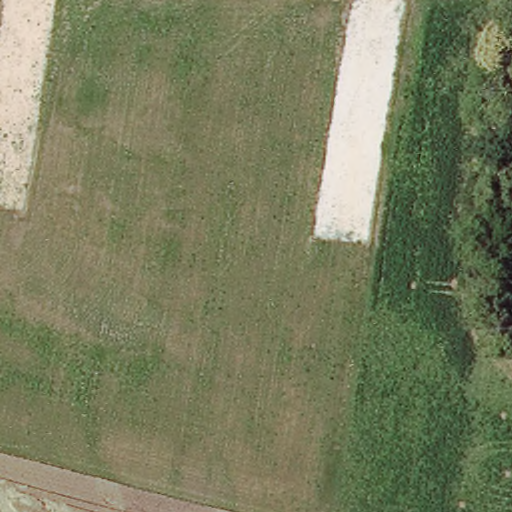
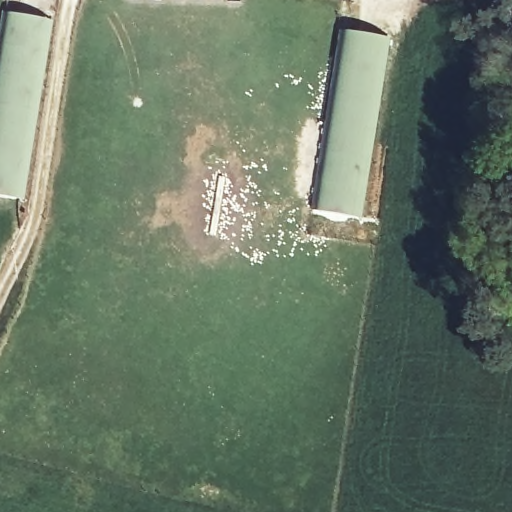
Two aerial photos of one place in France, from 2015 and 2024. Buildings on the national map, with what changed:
new [(10,15),(57,23),(28,200),(0,196),(0,75),(10,15)]
new [(360,220),(310,211),(343,31),(388,37),(360,220)]

